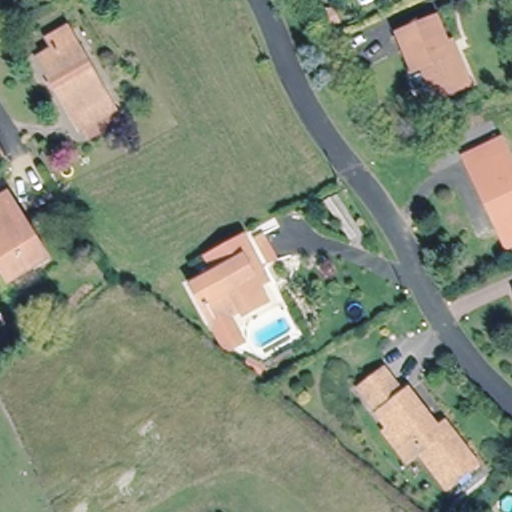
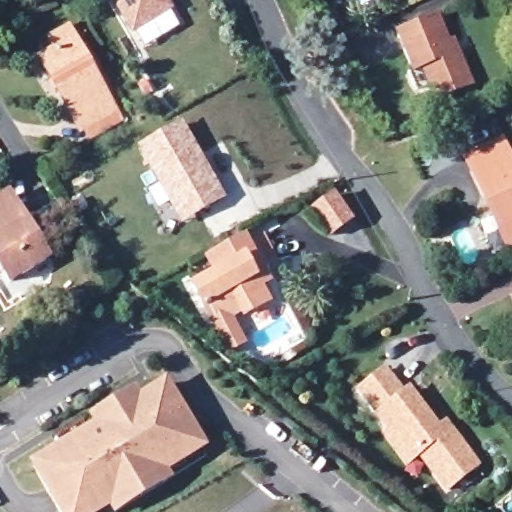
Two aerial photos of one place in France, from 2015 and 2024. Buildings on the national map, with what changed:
new [(174,10),(132,35),(112,0),(168,0),(174,10)]
unchanged [(411,71),(416,69),(401,33),(440,17),(450,44),(456,42),(460,52),(472,82),(438,96),(433,83),(419,89),(411,71)]
unchanged [(86,131),(80,120),(75,122),(44,67),(56,60),(48,46),(68,34),(76,49),(114,115),(86,131)]
new [(227,199),(181,225),(136,147),(182,123),(227,199)]
unchanged [(473,167),(467,154),(498,139),(512,169),(512,217),(495,225),(470,169),(473,167)]
unchanged [(0,265),(0,201),(9,195),(48,257),(10,281),(0,265)]
demolished [(195,283),(217,270),(206,253),(242,232),(263,267),(254,273),(267,296),(246,309),(243,303),(216,319),(195,283)]
new [(272,283),(265,287),(272,302),(243,319),(240,312),(234,317),(246,342),(226,353),(190,286),(212,273),(205,258),(246,235),(272,283)]
unchanged [(382,428),(386,425),(356,385),(381,366),(398,389),(405,386),(435,424),(442,419),(447,426),(473,461),(444,483),(416,446),(405,455),(382,428)]
new [(60,450),(55,442),(81,425),(86,434),(97,427),(92,418),(132,394),(137,403),(164,386),(182,415),(185,413),(192,425),(189,427),(196,439),(201,447),(175,463),(161,471),(167,480),(115,512),(110,503),(96,511),(94,512),(60,512),(32,467),(60,450)]

